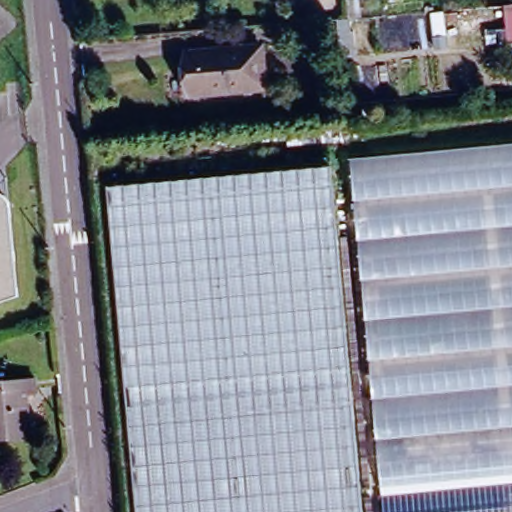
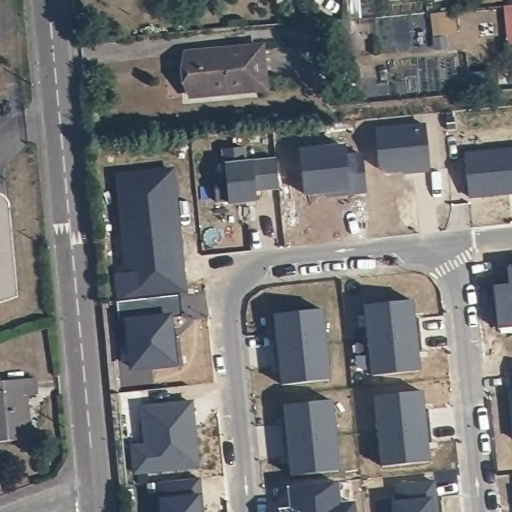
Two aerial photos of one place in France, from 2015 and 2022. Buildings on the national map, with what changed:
unchanged [(512,6),(512,42),(511,42),(508,6),(512,6)]
unchanged [(183,51),(259,45),(263,90),(187,96),(183,51)]
demolished [(512,386),(373,398),(353,159),(512,146),(512,386)]
demolished [(108,190),(335,171),(364,512),(136,512),(108,190)]
unchanged [(4,181),(7,210),(16,300),(0,305),(0,184),(4,181)]
unchanged [(32,380),(34,397),(26,398),(30,442),(0,446),(0,383),(32,380)]
demolished [(512,483),(381,495),(373,398),(512,386),(512,483)]
demolished [(512,512),(383,512),(381,495),(512,483),(512,512)]

